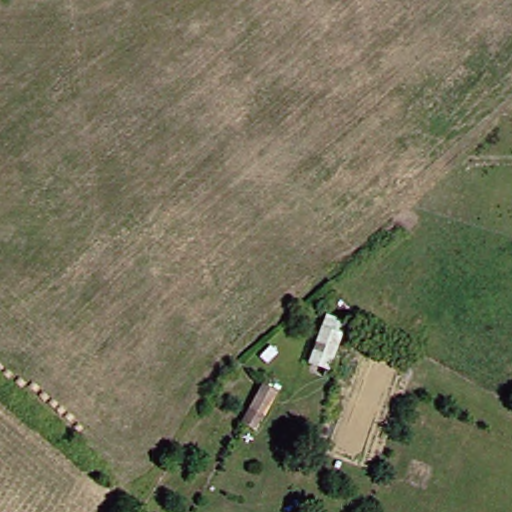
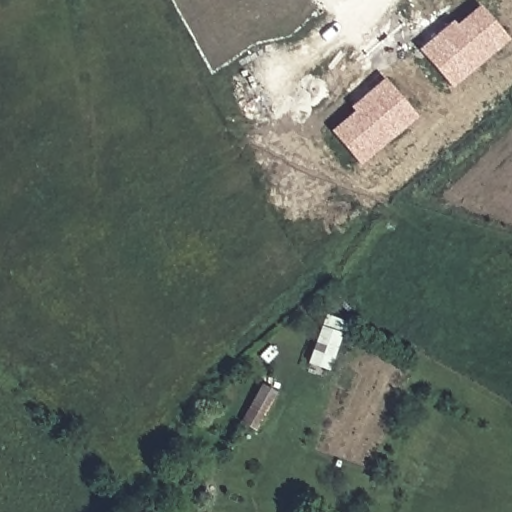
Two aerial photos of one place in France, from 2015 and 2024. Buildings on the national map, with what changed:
new [(418,48),(452,19),(456,24),(479,4),(509,40),(451,87),(418,48)]
new [(331,130),(353,111),(349,106),(383,78),(417,117),(359,165),(331,130)]
unchanged [(300,357),(317,333),(332,342),(319,369),(300,357)]
unchanged [(268,407),(259,426),(247,420),(258,401),(268,407)]

